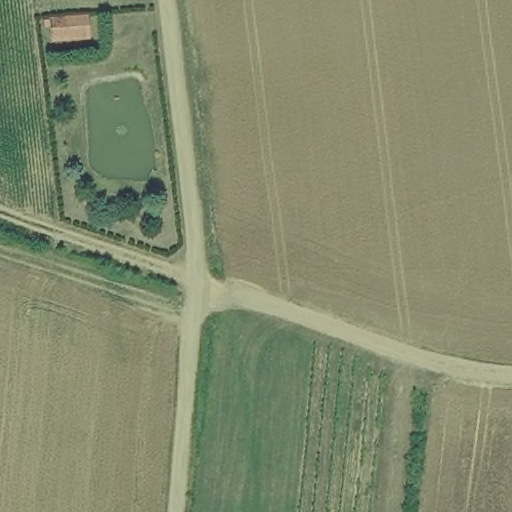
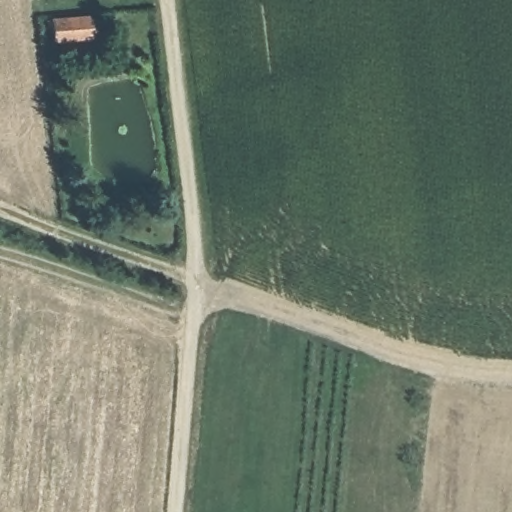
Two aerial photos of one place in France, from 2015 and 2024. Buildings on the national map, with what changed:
unchanged [(47,47),(45,20),(83,16),(85,39),(47,47)]

